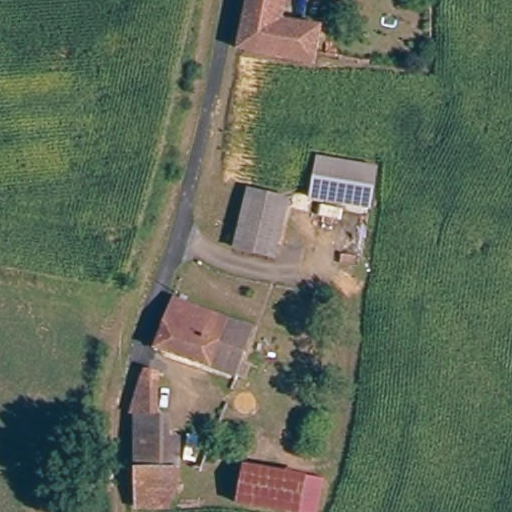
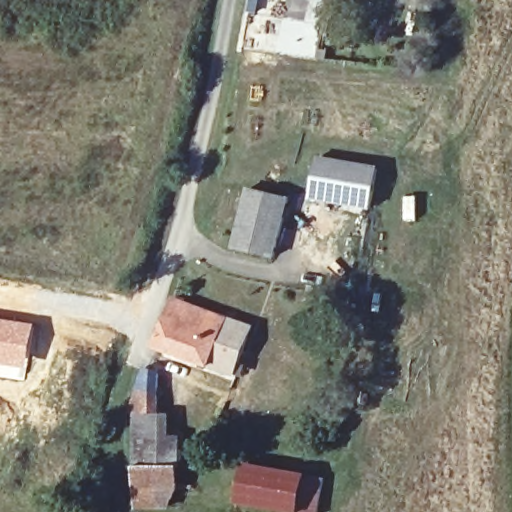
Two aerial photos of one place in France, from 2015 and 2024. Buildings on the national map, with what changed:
demolished [(237,49),(244,0),(284,0),(283,14),(318,22),(313,52),(312,60),(237,49)]
unchanged [(308,195),(315,153),(376,163),(367,206),(308,195)]
unchanged [(287,199),(271,258),(232,248),(248,190),(287,199)]
unchanged [(249,327),(233,373),(156,344),(173,298),(249,327)]
new [(36,323),(25,381),(0,377),(0,318),(36,323)]
unchanged [(154,373),(160,444),(174,446),(178,484),(164,506),(131,507),(127,416),(141,371),(154,373)]
unchanged [(302,469),(297,508),(237,501),(242,463),(302,469)]

